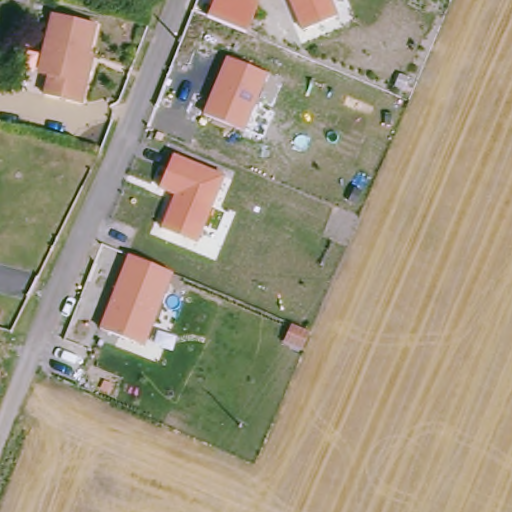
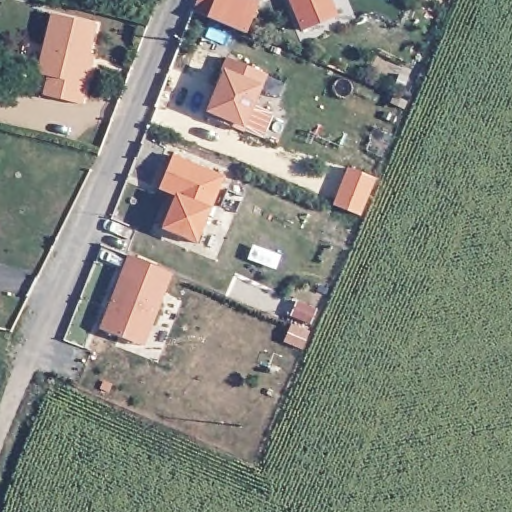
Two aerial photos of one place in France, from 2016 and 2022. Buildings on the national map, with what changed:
unchanged [(245,31),(210,16),(216,0),(259,0),(245,31)]
unchanged [(302,27),(290,0),(331,0),(337,12),(302,27)]
unchanged [(87,82),(82,106),(43,96),(47,77),(38,75),(50,16),(91,24),(80,81),(87,82)]
unchanged [(243,128),(203,113),(225,54),(270,71),(243,128)]
unchanged [(161,227),(174,195),(160,189),(174,155),(225,177),(199,243),(161,227)]
new [(351,166),(378,177),(362,213),(336,203),(351,166)]
unchanged [(143,342),(97,325),(120,268),(165,286),(143,342)]

